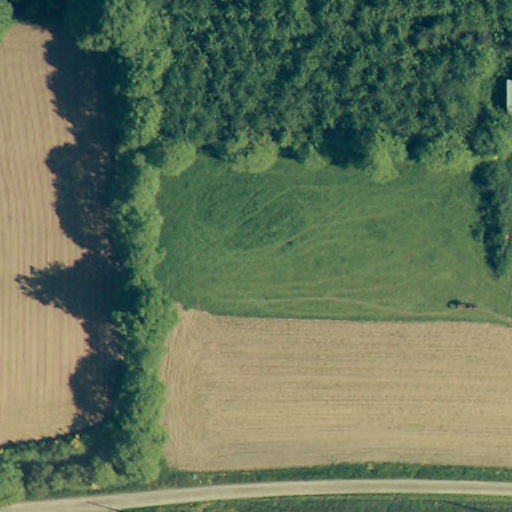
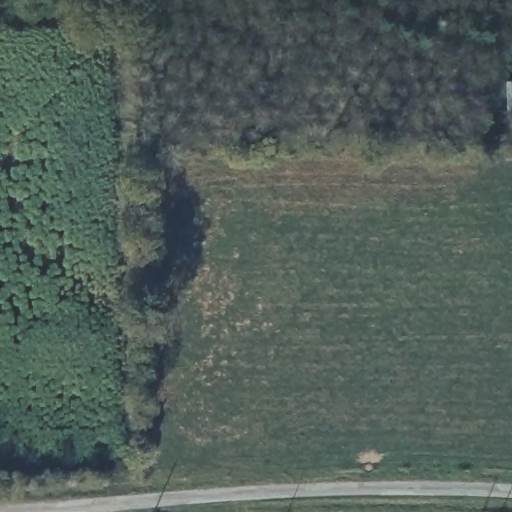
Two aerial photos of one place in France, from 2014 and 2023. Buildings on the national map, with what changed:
unchanged [(508,125),(508,80),(512,79),(512,125),(508,125)]

